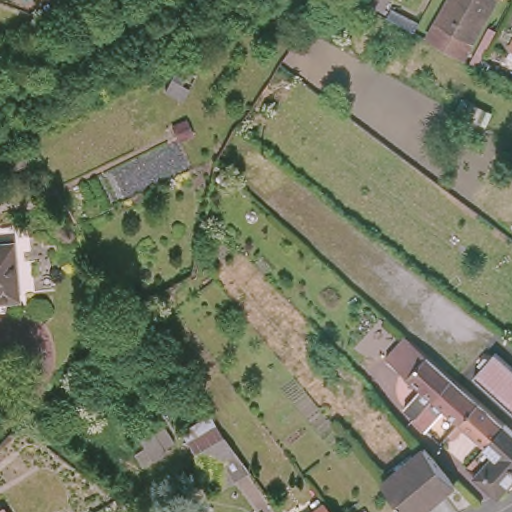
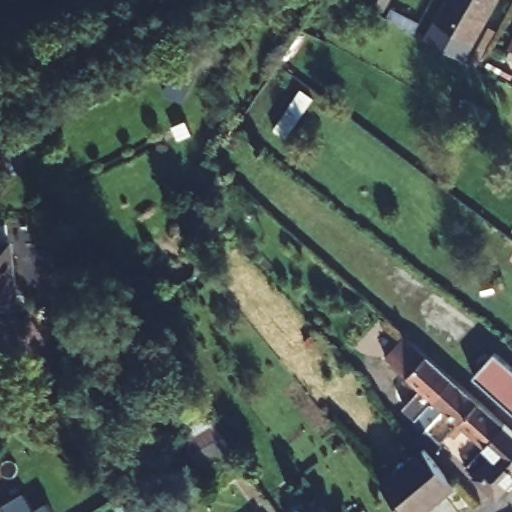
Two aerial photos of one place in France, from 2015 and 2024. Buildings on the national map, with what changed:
unchanged [(446,0),(486,0),(491,3),(464,47),(430,26),(446,0)]
unchanged [(17,292),(0,293),(0,239),(13,238),(17,292)]
unchanged [(497,345),(512,358),(512,401),(476,367),(497,345)]
unchanged [(510,495),(505,498),(481,472),(499,452),(493,445),(496,441),(476,422),(465,433),(461,428),(473,415),(466,410),(443,433),(422,411),(417,405),(429,391),(434,396),(440,390),(419,371),(412,378),(403,370),(424,347),(434,356),(454,375),(485,402),(511,426),(512,427),(512,493),(510,495)]
unchanged [(408,396),(402,389),(412,378),(419,384),(408,396)]
unchanged [(213,477),(190,447),(186,441),(208,423),(213,429),(236,459),(213,477)]
unchanged [(454,445),(449,440),(454,435),(459,439),(454,445)]
unchanged [(453,482),(418,512),(407,512),(382,483),(422,449),(453,482)]
new [(25,493),(33,507),(46,501),(53,512),(6,512),(3,507),(25,493)]
unchanged [(6,512),(0,512),(0,508),(3,507),(6,512)]
unchanged [(315,512),(305,512),(311,507),(315,512)]
unchanged [(354,512),(348,512),(353,510),(354,512)]

